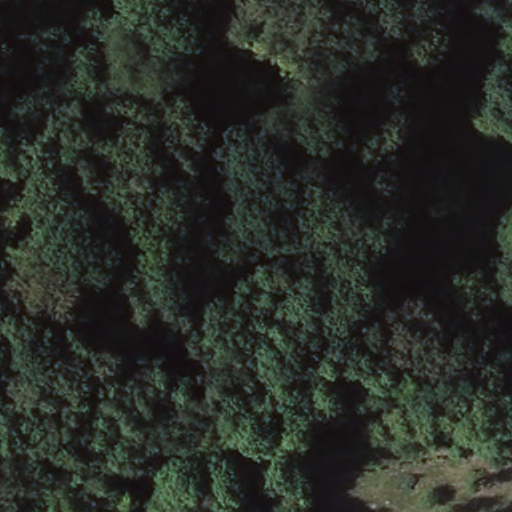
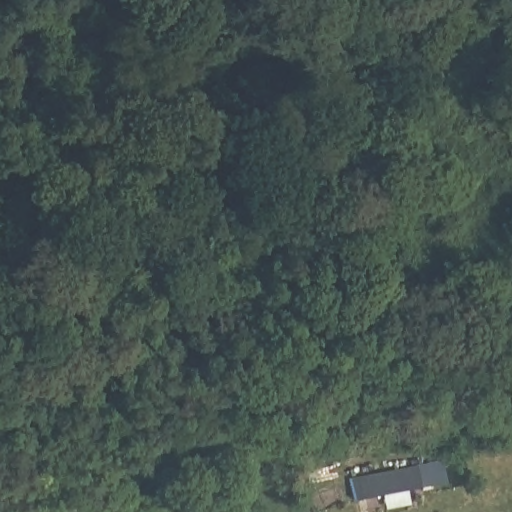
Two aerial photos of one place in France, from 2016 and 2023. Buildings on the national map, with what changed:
new [(418,467),(423,490),(355,502),(350,479),(418,467)]

